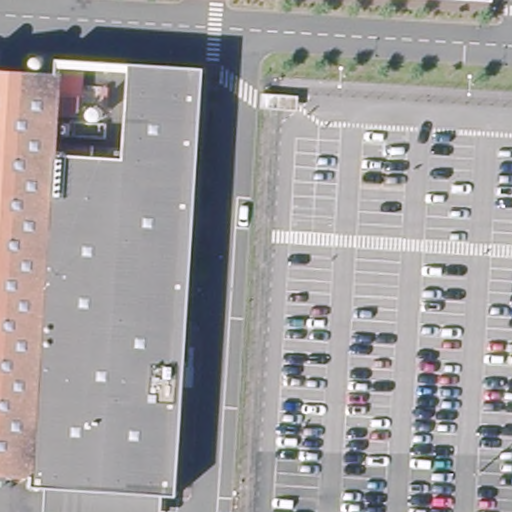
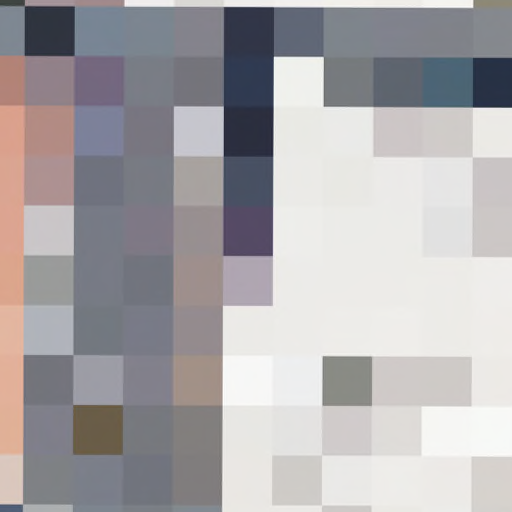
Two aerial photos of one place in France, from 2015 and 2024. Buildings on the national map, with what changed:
unchanged [(489,1),(467,0),(489,0),(489,1)]
unchanged [(35,470),(0,468),(0,67),(63,71),(63,67),(205,75),(176,490),(169,490),(50,482),(35,481),(35,470)]
new [(236,512),(260,72),(512,88),(512,512),(236,512)]
unchanged [(167,512),(50,512),(50,482),(169,490),(167,512)]

